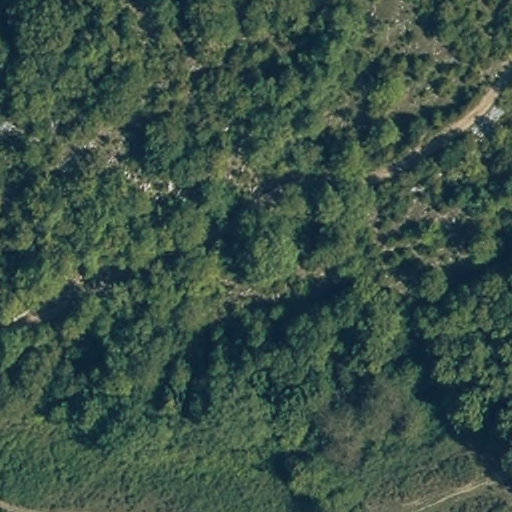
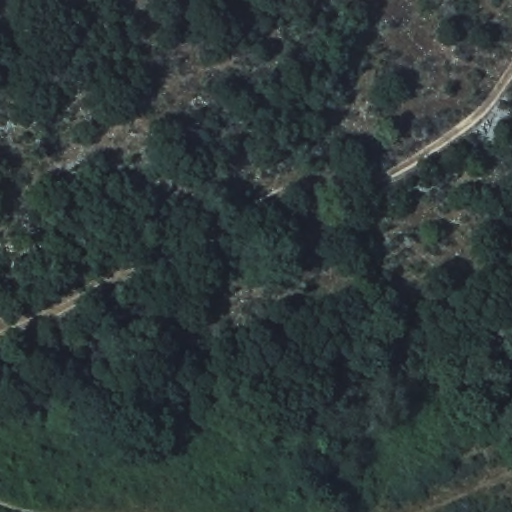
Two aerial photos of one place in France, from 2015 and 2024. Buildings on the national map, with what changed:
[]

